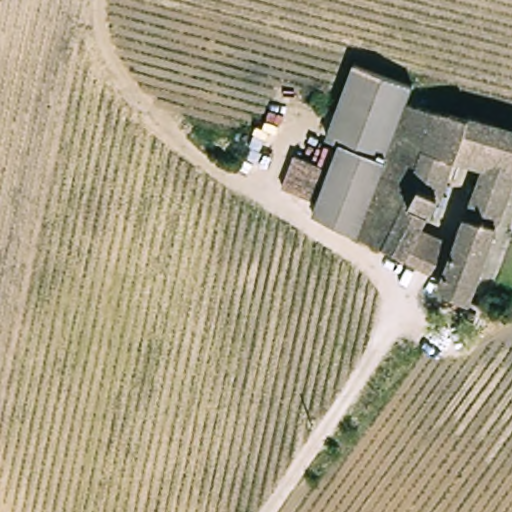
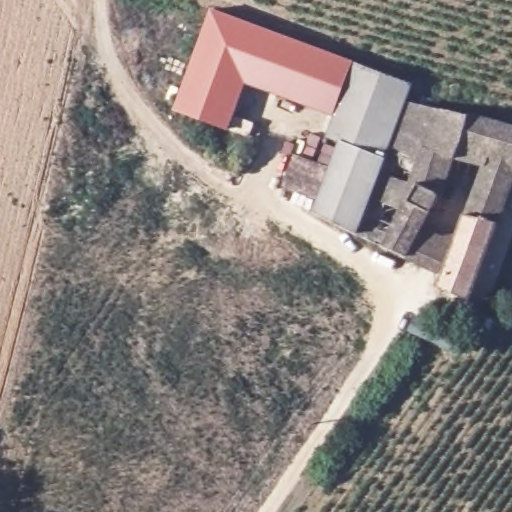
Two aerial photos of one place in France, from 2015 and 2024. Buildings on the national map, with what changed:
new [(212,10),(357,64),(337,118),(248,87),(230,131),(176,111),(212,10)]
unchanged [(357,64),(415,84),(410,100),(384,165),(340,145),(329,138),(357,64)]
unchanged [(447,151),(433,190),(432,202),(425,208),(418,227),(407,258),(356,235),(384,165),(410,100),(512,127),(512,184),(499,223),(500,224),(479,281),(472,298),(440,286),(443,275),(455,242),(482,166),(447,151)]
unchanged [(348,232),(313,214),(312,213),(319,197),(330,169),(340,145),(384,165),(356,235),(348,232)]
unchanged [(319,197),(285,183),(295,156),(330,169),(319,197)]
unchanged [(443,275),(415,261),(407,258),(418,227),(455,242),(443,275)]

